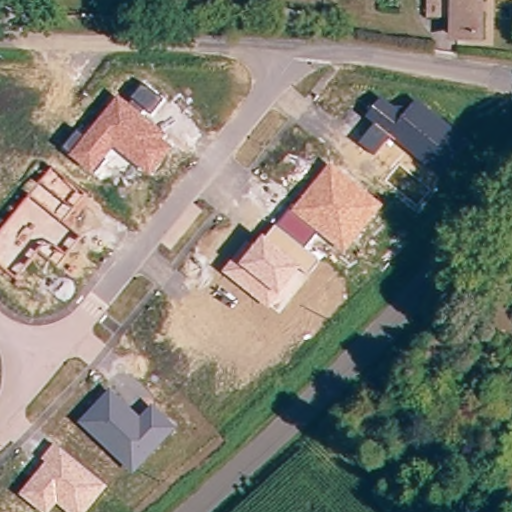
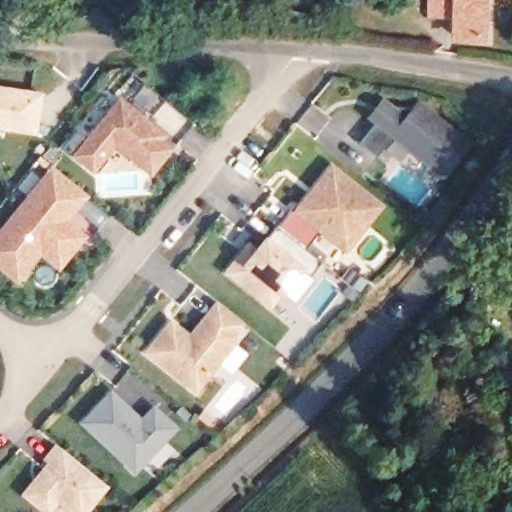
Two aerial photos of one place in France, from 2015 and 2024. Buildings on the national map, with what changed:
unchanged [(484,38),(460,37),(461,16),(437,15),(428,15),(428,0),(487,0),(484,38)]
unchanged [(164,99),(152,115),(145,110),(143,114),(168,135),(164,140),(174,148),(152,175),(114,147),(106,159),(108,160),(96,174),(64,147),(79,130),(86,136),(119,95),(130,103),(145,83),(164,99)]
new [(36,135),(0,130),(0,85),(43,92),(36,135)]
unchanged [(407,112),(419,98),(462,134),(433,171),(390,139),(376,155),(360,144),(375,124),(368,118),(384,96),(407,112)]
unchanged [(385,205),(346,253),(318,232),(307,248),(322,260),(309,276),(302,269),(272,308),(224,273),(254,237),(261,242),(330,162),(385,205)]
new [(41,256),(18,283),(0,270),(0,230),(53,166),(90,197),(70,221),(89,236),(59,270),(41,256)]
new [(180,328),(198,306),(208,293),(233,313),(224,324),(225,334),(187,382),(139,343),(162,313),(180,328)]
unchanged [(142,416),(155,403),(179,428),(134,475),(79,423),(113,388),(142,416)]
unchanged [(87,512),(68,512),(58,503),(50,512),(44,512),(19,493),(46,462),(41,459),(55,442),(109,485),(87,512)]

